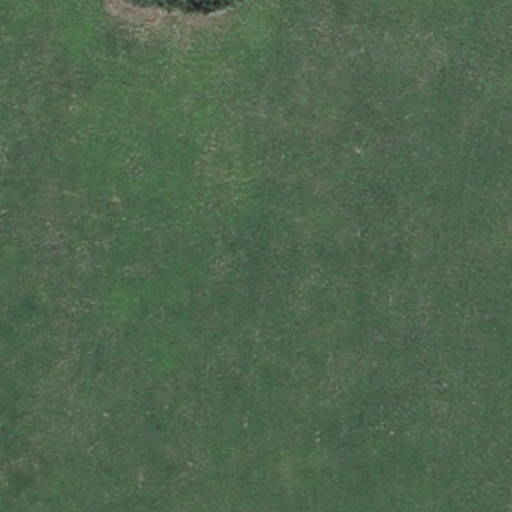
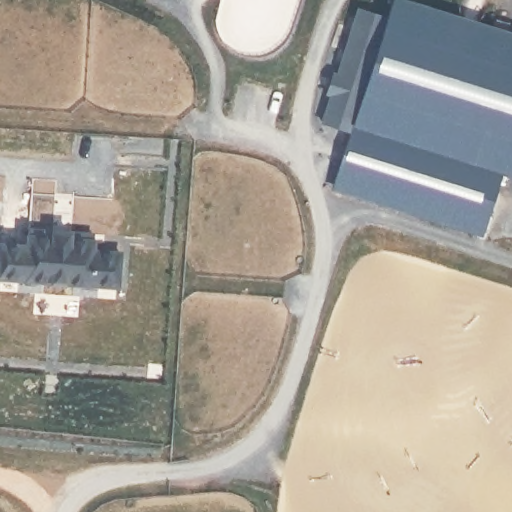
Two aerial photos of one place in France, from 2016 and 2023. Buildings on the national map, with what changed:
new [(485,239),(331,194),(348,139),(319,130),(354,12),(382,21),(390,1),(512,37),(512,185),(502,183),(485,239)]
new [(26,250),(26,234),(95,237),(95,255),(129,258),(121,291),(0,285),(0,250),(26,250)]

